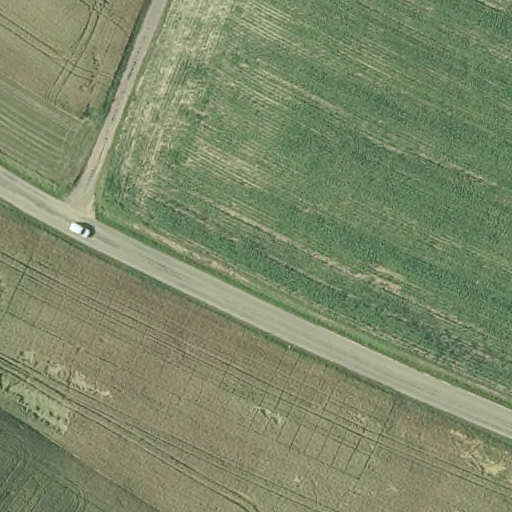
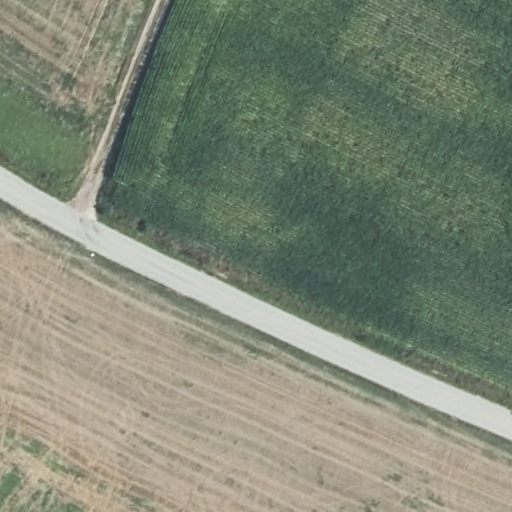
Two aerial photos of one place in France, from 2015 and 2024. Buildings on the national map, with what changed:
[]

